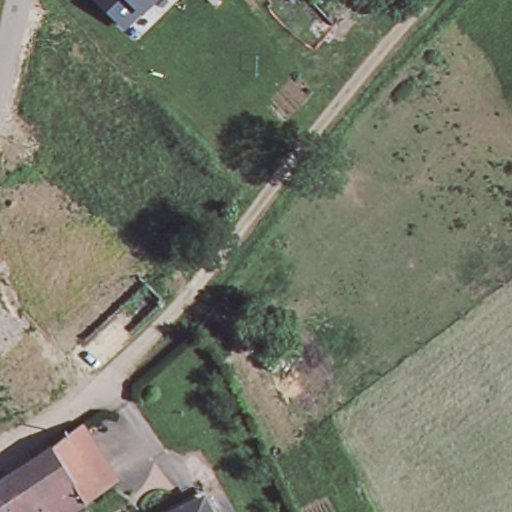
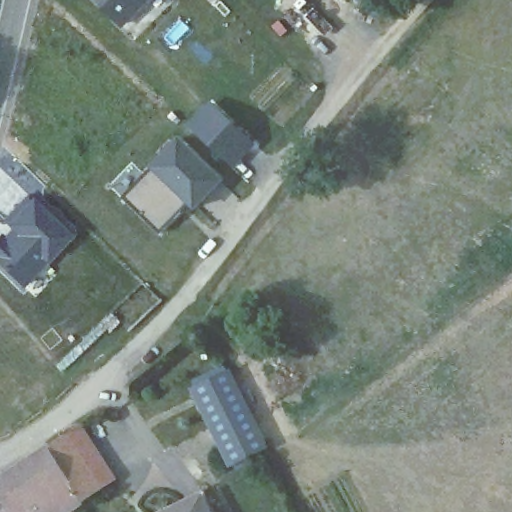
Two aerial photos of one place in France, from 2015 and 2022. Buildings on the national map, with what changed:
unchanged [(120,20),(100,0),(143,0),(120,20)]
demolished [(332,26),(308,0),(360,0),(332,26)]
new [(224,179),(195,210),(187,204),(160,233),(123,197),(152,168),(148,166),(178,136),(224,179)]
new [(7,239),(15,231),(6,222),(35,197),(75,236),(22,287),(0,266),(0,238),(3,235),(7,239)]
new [(270,448),(229,466),(190,387),(230,368),(270,448)]
unchanged [(77,424),(113,480),(80,502),(45,446),(77,424)]
unchanged [(0,478),(45,446),(80,502),(65,512),(0,512),(0,479),(0,478)]
unchanged [(202,512),(153,512),(193,493),(202,512)]

